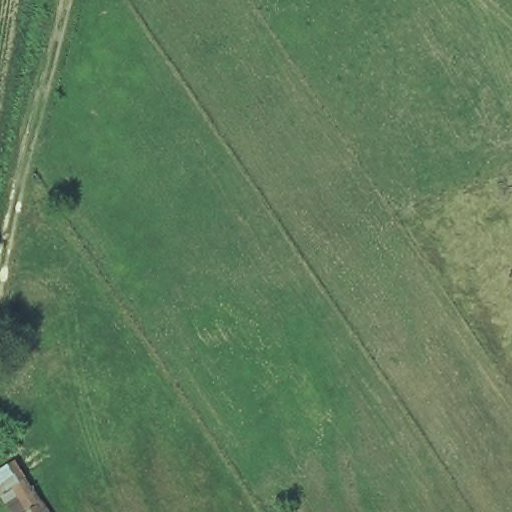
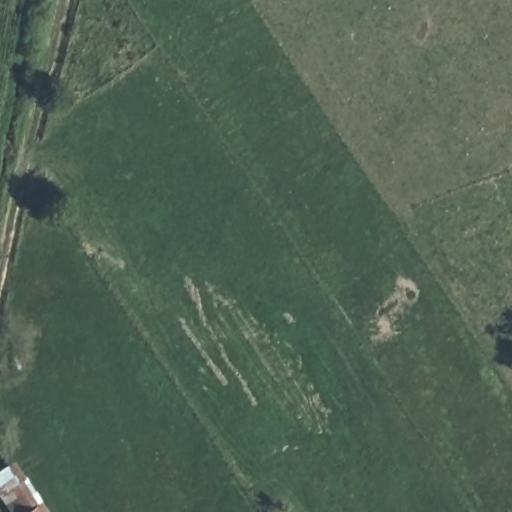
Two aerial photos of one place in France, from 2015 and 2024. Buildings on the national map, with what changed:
unchanged [(50,512),(7,512),(0,501),(0,468),(14,459),(50,512)]

